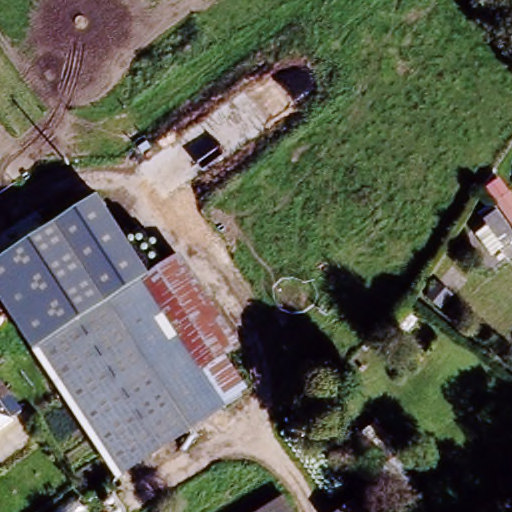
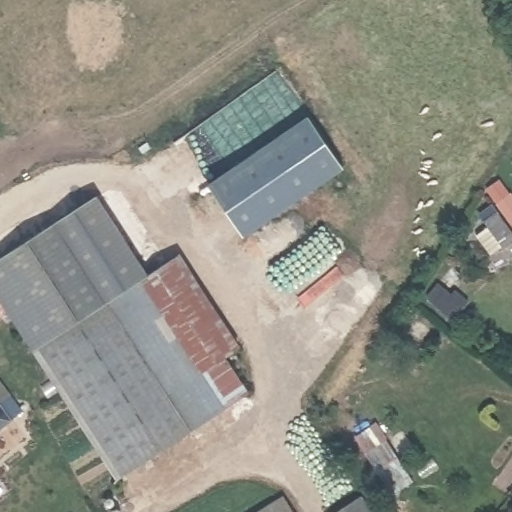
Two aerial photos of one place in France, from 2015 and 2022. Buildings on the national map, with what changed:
new [(244,236),(210,183),(309,117),(345,169),(244,236)]
unchanged [(127,294),(115,276),(94,292),(103,306),(51,338),(30,351),(0,306),(0,261),(3,259),(97,198),(150,278),(136,287),(127,294)]
unchanged [(510,220),(512,219),(512,223),(510,220)]
unchanged [(510,243),(495,255),(481,235),(478,231),(487,226),(496,220),(510,243)]
unchanged [(171,263),(230,347),(216,357),(241,394),(221,409),(136,287),(171,263)]
unchanged [(121,481),(32,356),(103,306),(94,292),(115,276),(127,294),(136,287),(221,409),(121,481)]
unchanged [(12,423),(0,433),(0,381),(2,379),(10,388),(22,404),(8,415),(12,423)]
unchanged [(406,480),(390,492),(348,437),(371,420),(395,453),(390,457),(406,480)]
unchanged [(289,512),(261,512),(280,499),(289,512)]
unchanged [(354,505),(359,512),(344,512),(354,505)]

